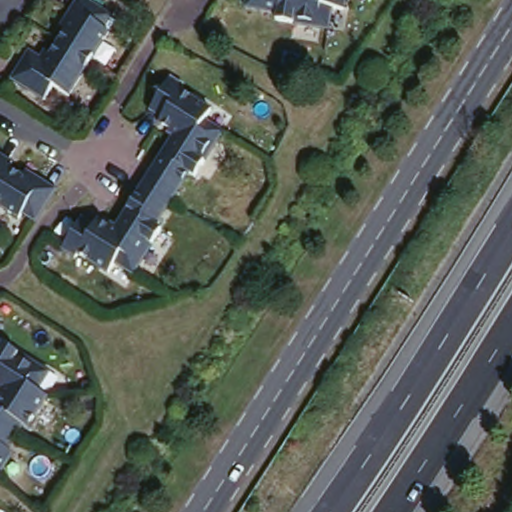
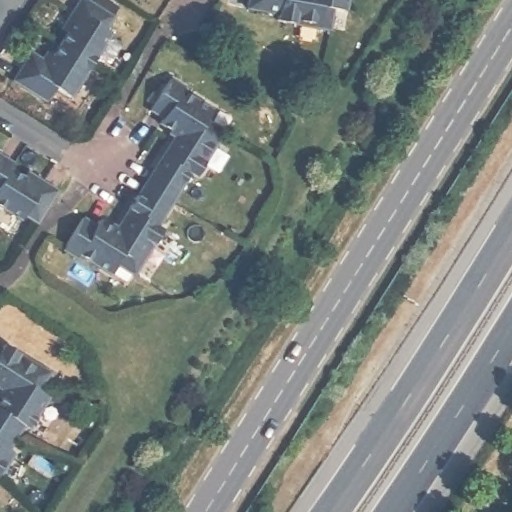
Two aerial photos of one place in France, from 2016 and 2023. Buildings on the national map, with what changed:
unchanged [(49,89),(41,97),(10,78),(32,46),(49,52),(84,0),(99,0),(121,15),(74,99),(49,89)]
unchanged [(255,0),(351,0),(350,5),(337,2),(333,26),(281,19),(282,10),(254,7),(255,0)]
unchanged [(84,219),(95,226),(100,219),(104,222),(113,227),(125,235),(138,212),(131,207),(135,202),(158,166),(165,154),(171,158),(183,139),(166,128),(161,125),(166,117),(160,114),(153,109),(171,81),(181,87),(178,93),(208,112),(202,121),(221,133),(197,174),(191,170),(159,222),(164,225),(137,267),(119,255),(112,265),(82,246),(80,251),(67,242),(84,219)]
unchanged [(10,165),(25,172),(41,182),(44,178),(57,187),(39,217),(25,209),(20,215),(0,202),(0,152),(13,160),(10,165)]
unchanged [(7,388),(13,380),(4,374),(5,370),(0,367),(0,344),(1,345),(4,341),(48,367),(38,384),(47,391),(29,422),(24,418),(9,442),(14,446),(0,466),(0,394),(4,387),(7,388)]

